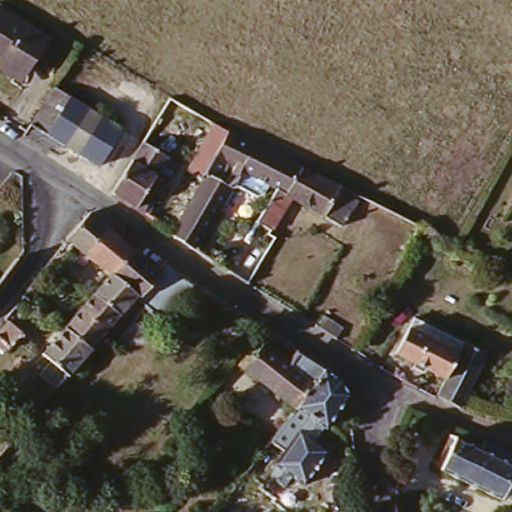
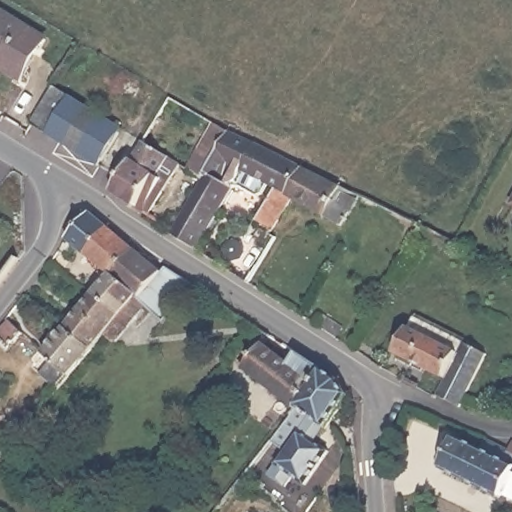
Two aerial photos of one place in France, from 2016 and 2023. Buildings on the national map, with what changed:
unchanged [(43,39),(35,53),(31,50),(15,75),(0,66),(0,63),(3,58),(0,56),(0,13),(43,39)]
unchanged [(48,86),(117,128),(95,165),(25,125),(48,86)]
unchanged [(185,171),(189,164),(198,148),(206,134),(212,137),(218,141),(224,130),(271,156),(273,156),(297,168),(281,194),(268,187),(228,164),(222,175),(229,180),(190,250),(166,235),(198,178),(197,178),(185,171)]
unchanged [(132,141),(170,164),(157,184),(149,179),(140,200),(144,203),(139,215),(101,192),(132,141)]
unchanged [(348,198),(341,209),(343,210),(335,225),(285,197),(267,226),(250,217),(268,187),(281,194),(297,168),(323,182),(334,188),(348,198)]
unchanged [(512,197),(512,204),(509,203),(512,197)]
unchanged [(110,328),(97,343),(70,322),(99,289),(116,269),(90,248),(78,239),(69,251),(62,246),(77,229),(96,207),(113,221),(140,243),(167,265),(170,260),(200,280),(167,315),(149,300),(133,318),(118,336),(110,328)]
unchanged [(269,236),(261,247),(241,282),(229,275),(204,259),(222,228),(237,237),(240,231),(242,232),(250,217),(267,226),(262,233),(269,236)]
unchanged [(3,237),(23,253),(0,283),(0,240),(3,237)]
unchanged [(53,299),(59,304),(54,309),(48,304),(53,299)]
unchanged [(15,314),(29,327),(14,343),(1,330),(2,328),(13,317),(15,314)]
unchanged [(432,400),(438,383),(390,357),(409,321),(480,357),(454,410),(432,400)]
unchanged [(97,343),(61,384),(44,368),(56,355),(48,348),(70,322),(97,343)]
unchanged [(292,411),(236,368),(250,350),(256,343),(261,346),(287,366),(295,357),(321,374),(292,411)]
unchanged [(321,374),(339,385),(346,398),(321,430),(300,413),(293,421),(288,417),(292,411),(321,374)]
unchanged [(21,413),(24,409),(32,415),(28,419),(21,413)]
unchanged [(488,500),(425,469),(440,437),(464,448),(470,439),(492,449),(490,456),(493,457),(498,440),(512,444),(512,483),(503,501),(490,496),(488,500)]
unchanged [(292,489),(292,496),(287,501),(281,501),(275,496),(275,490),(279,484),(287,486),(292,489)]

